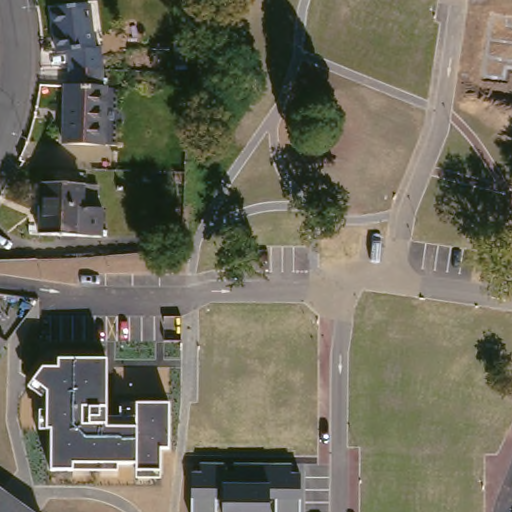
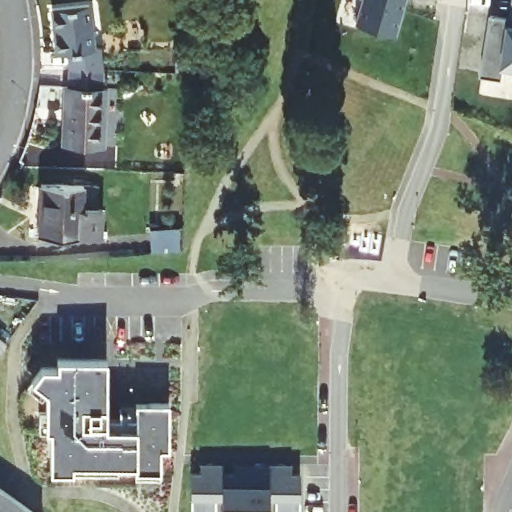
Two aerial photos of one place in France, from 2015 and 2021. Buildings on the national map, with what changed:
new [(355,24),(362,0),(403,0),(394,34),(355,24)]
unchanged [(63,70),(62,57),(50,58),(47,14),(84,9),(86,30),(88,50),(94,50),(95,71),(65,71),(63,70)]
new [(491,18),(508,21),(507,28),(510,27),(512,10),(512,72),(504,70),(503,80),(482,78),(491,18)]
unchanged [(95,71),(97,71),(96,91),(101,91),(99,149),(58,148),(59,90),(64,90),(65,71),(95,71)]
unchanged [(34,240),(35,188),(78,189),(77,240),(55,240),(34,240)]
new [(177,224),(178,245),(149,246),(149,225),(177,224)]
unchanged [(168,449),(160,449),(159,478),(136,478),(136,464),(116,463),(116,471),(50,471),(51,430),(37,430),(38,411),(46,411),(46,399),(28,386),(42,369),(57,369),(57,360),(105,360),(106,418),(135,418),(135,403),(168,404),(168,449)]
unchanged [(290,474),(300,474),(300,512),(223,512),(223,498),(215,499),(215,512),(191,512),(191,473),(198,472),(198,463),(290,464),(290,474)]
unchanged [(17,505),(26,512),(0,512),(0,492),(17,505)]

